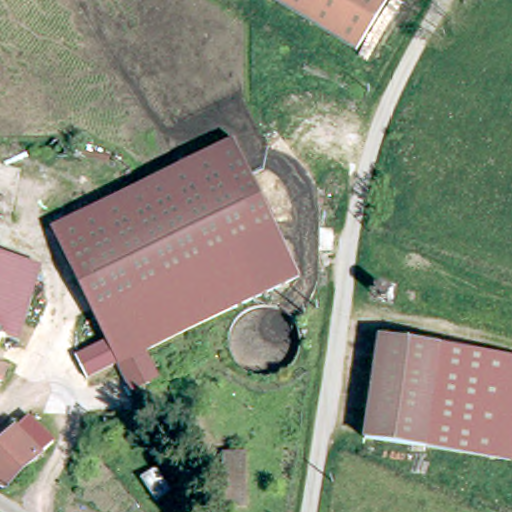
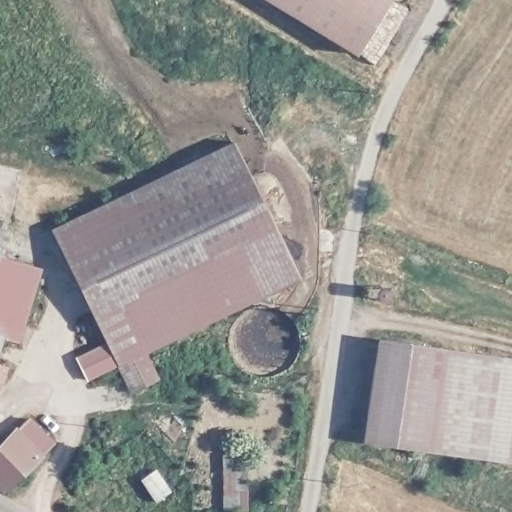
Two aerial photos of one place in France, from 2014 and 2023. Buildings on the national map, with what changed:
unchanged [(362,44),(292,0),(390,0),(362,44)]
unchanged [(234,141),(304,285),(150,358),(161,387),(134,400),(52,227),(234,141)]
unchanged [(21,342),(3,337),(0,336),(0,256),(43,269),(21,342)]
unchanged [(0,346),(0,336),(3,337),(0,346)]
unchanged [(374,339),(437,347),(424,447),(361,438),(374,339)]
unchanged [(437,347),(503,357),(489,456),(424,447),(437,347)]
unchanged [(512,358),(512,405),(505,458),(489,456),(503,357),(512,358)]
unchanged [(0,383),(0,367),(5,368),(0,383)]
unchanged [(0,447),(10,435),(21,423),(49,446),(39,459),(1,494),(0,493),(0,447)]
unchanged [(223,454),(242,454),(241,508),(221,508),(223,454)]
unchanged [(155,468),(168,491),(152,499),(139,476),(155,468)]

